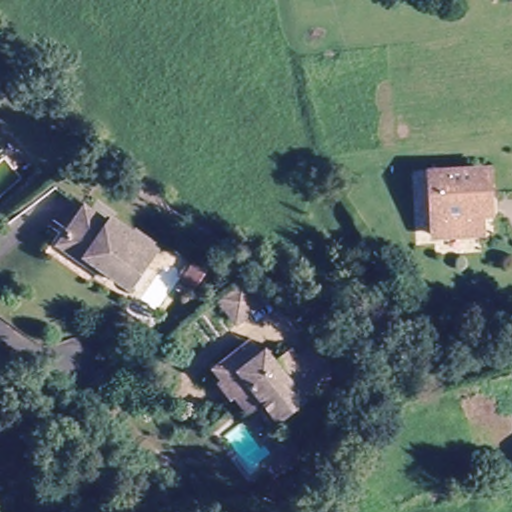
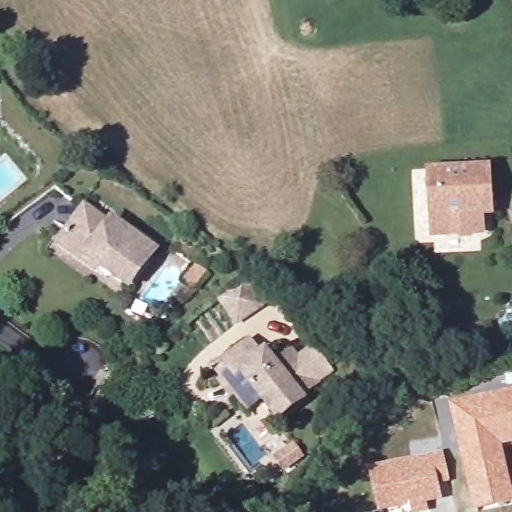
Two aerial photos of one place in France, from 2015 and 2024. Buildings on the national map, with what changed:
unchanged [(430,170),(486,170),(486,193),(486,207),(468,207),(469,233),(431,234),(430,170)]
unchanged [(128,286),(118,278),(86,255),(82,262),(56,245),(81,209),(106,227),(111,220),(129,232),(154,249),(128,286)]
unchanged [(268,308),(244,323),(228,302),(249,285),(268,308)]
unchanged [(239,396),(219,365),(249,345),(260,359),(267,355),(270,352),(282,368),(296,358),(318,390),(280,416),(268,398),(249,410),(239,396)]
new [(512,389),(512,445),(503,447),(512,488),(512,503),(474,511),(448,402),(512,389)]
new [(294,441),(304,458),(283,473),(271,456),(294,441)]
new [(444,452),(451,483),(440,486),(443,500),(428,504),(429,510),(421,512),(411,512),(409,507),(387,512),(378,512),(367,469),(444,452)]

